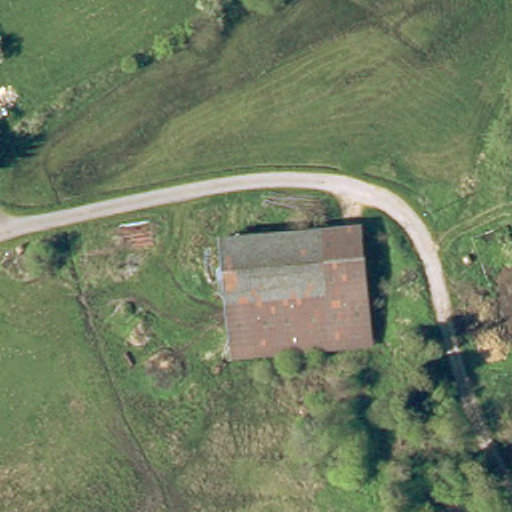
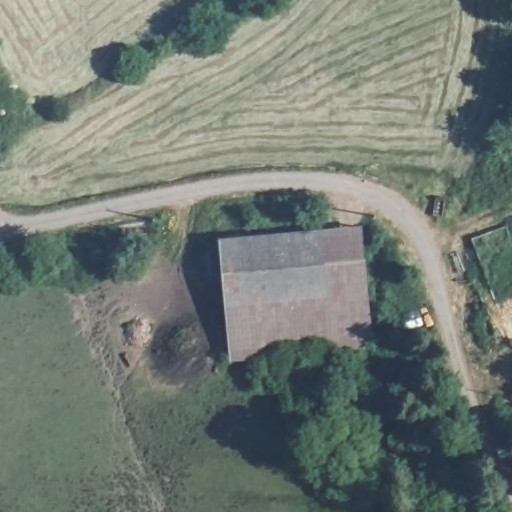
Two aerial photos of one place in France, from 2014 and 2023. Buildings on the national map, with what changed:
unchanged [(373,347),(232,361),(219,238),(363,225),(373,347)]

